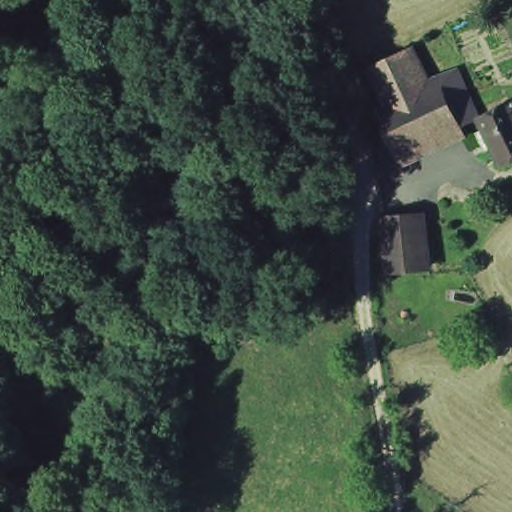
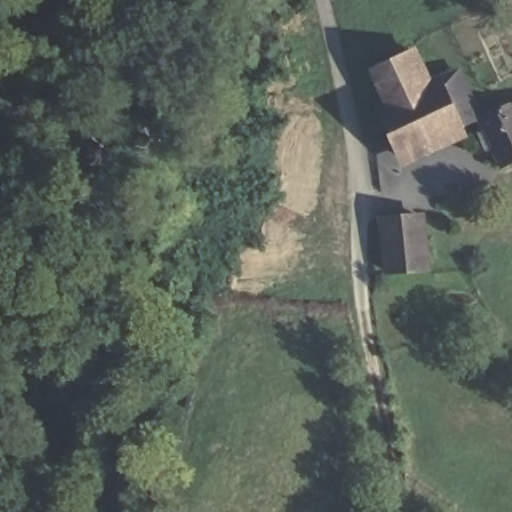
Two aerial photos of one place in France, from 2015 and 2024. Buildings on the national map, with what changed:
unchanged [(370,65),(408,47),(425,87),(387,104),(370,65)]
unchanged [(387,104),(425,87),(451,76),(461,96),(467,93),(476,118),(470,121),(399,154),(377,107),(387,104)]
unchanged [(476,118),(512,101),(512,161),(499,167),(476,118)]
unchanged [(385,210),(427,207),(430,257),(389,260),(385,210)]

